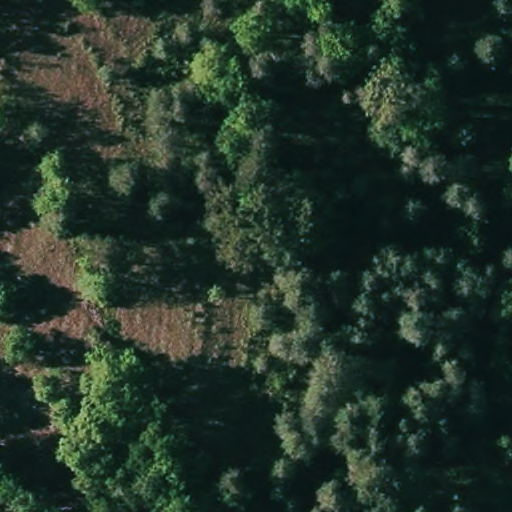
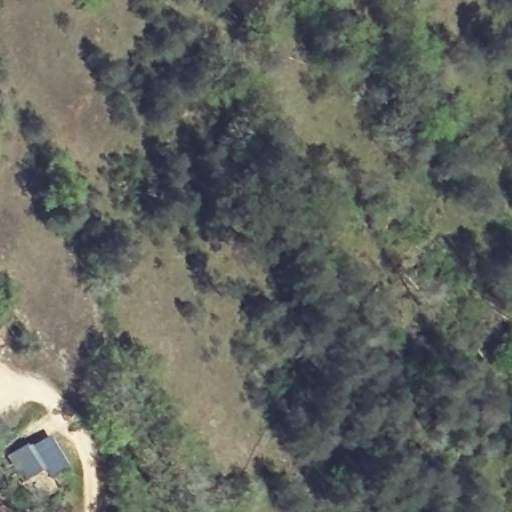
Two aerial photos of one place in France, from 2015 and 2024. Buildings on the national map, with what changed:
new [(44,472),(37,475),(44,487),(27,496),(5,458),(26,446),(28,450),(30,448),(48,438),(65,468),(47,478),(44,472)]

